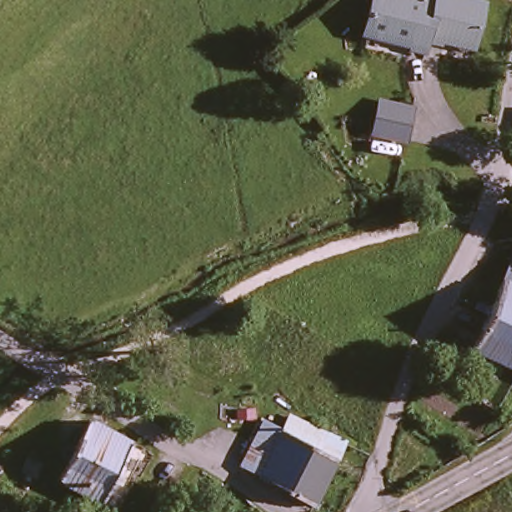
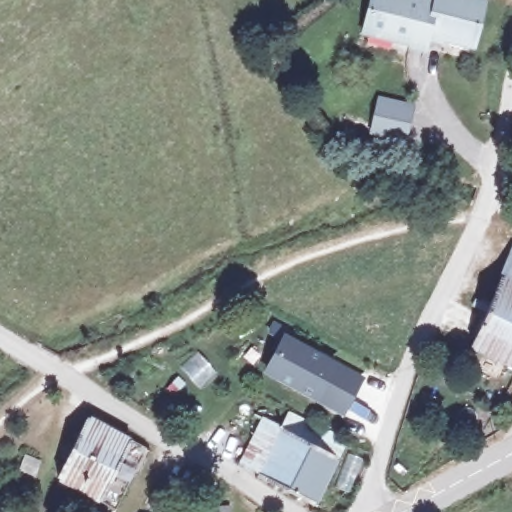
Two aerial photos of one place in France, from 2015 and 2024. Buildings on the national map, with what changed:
unchanged [(413,49),(414,43),(366,30),(375,0),(440,0),(432,39),(429,53),(413,49)]
unchanged [(477,0),(489,3),(479,45),(455,39),(452,45),(432,39),(440,0),(477,0)]
unchanged [(412,109),(405,140),(373,134),(379,103),(412,109)]
unchanged [(512,255),(512,297),(497,291),(512,255)]
unchanged [(473,350),(497,291),(512,297),(512,365),(473,350)]
new [(318,404),(263,374),(285,334),(340,364),(364,377),(344,419),(318,404)]
unchanged [(316,446),(281,429),(289,413),(350,441),(346,452),(321,503),(241,462),(263,419),(316,446)]
unchanged [(148,451),(111,512),(110,512),(57,479),(98,415),(148,451)]
unchanged [(39,494),(31,490),(20,486),(28,467),(39,471),(48,474),(39,494)]

